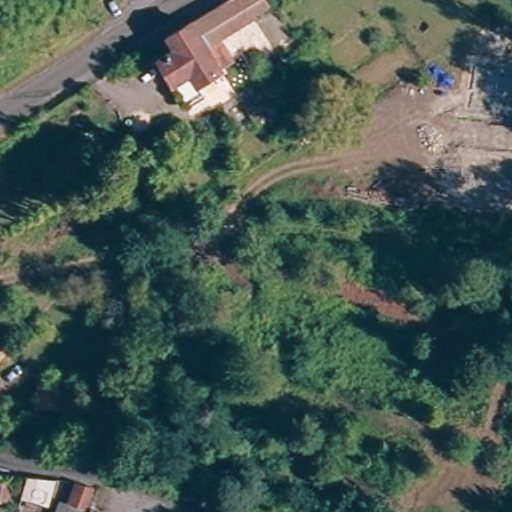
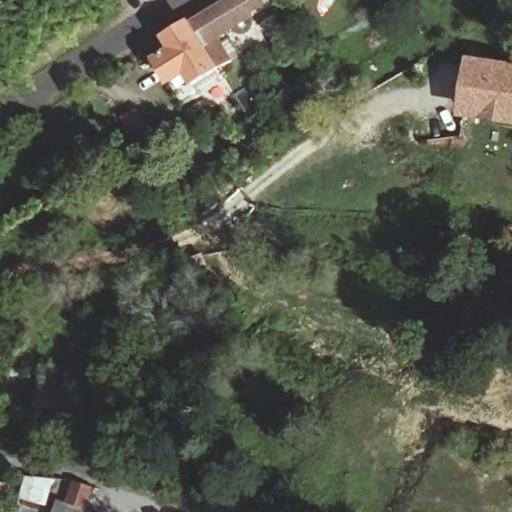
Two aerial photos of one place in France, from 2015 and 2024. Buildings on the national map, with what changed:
unchanged [(225,75),(201,90),(208,102),(192,112),(164,66),(182,55),(175,44),(246,0),(267,0),(272,10),(257,19),(262,25),(255,30),(250,23),(222,41),(231,57),(237,67),(225,75)]
new [(468,58),(512,64),(512,126),(460,117),(468,58)]
unchanged [(14,353),(2,363),(0,361),(0,339),(14,353)]
unchanged [(99,427),(47,418),(53,387),(71,390),(69,397),(103,403),(99,427)]
unchanged [(59,512),(62,506),(68,508),(77,486),(95,492),(88,512),(59,512)]
unchanged [(12,512),(9,512),(0,508),(0,502),(4,493),(17,499),(12,512)]

